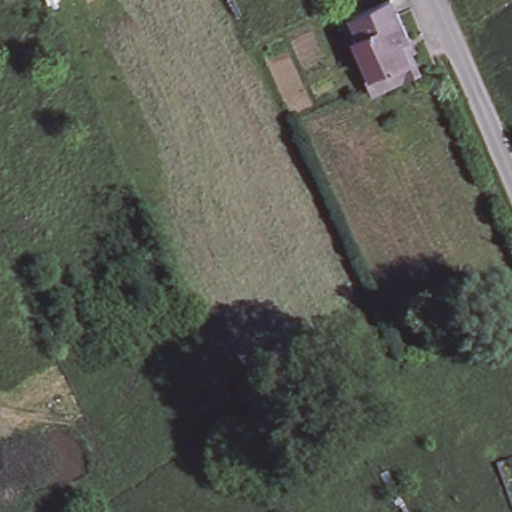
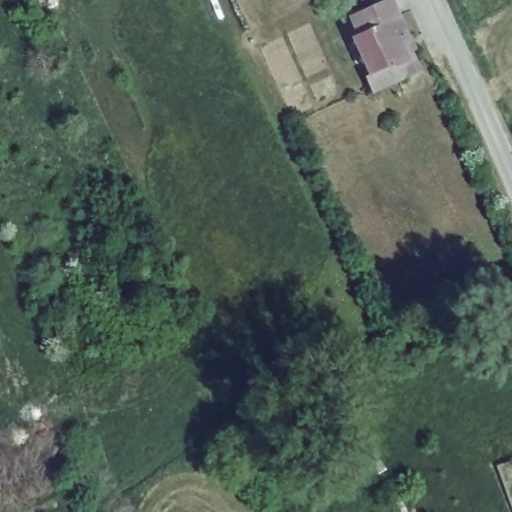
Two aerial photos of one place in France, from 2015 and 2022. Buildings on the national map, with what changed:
unchanged [(342,0),(397,0),(405,18),(414,15),(419,26),(408,31),(416,50),(393,60),(365,72),(359,60),(367,56),(341,0),(342,0)]

